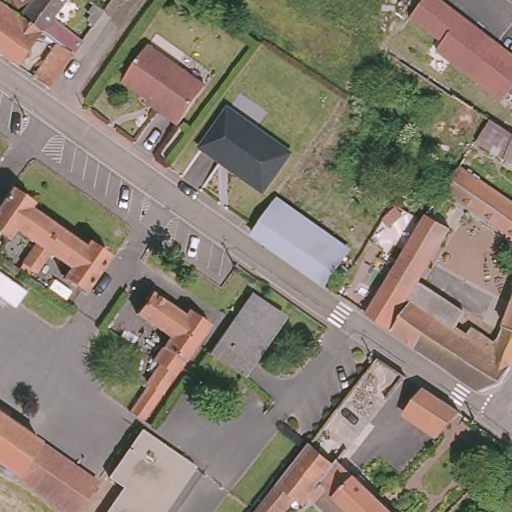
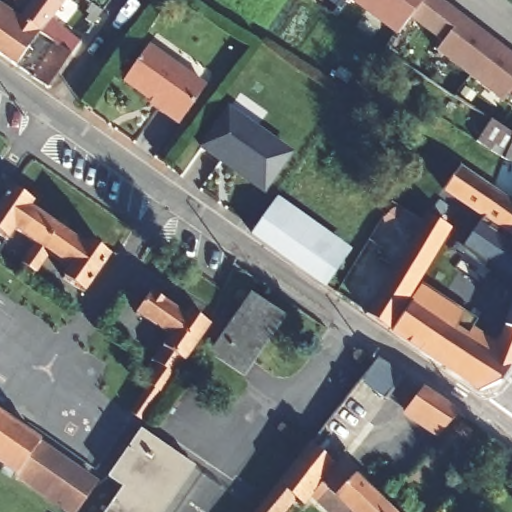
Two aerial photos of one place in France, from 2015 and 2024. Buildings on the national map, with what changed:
unchanged [(17,10),(10,0),(25,0),(28,4),(17,10)]
unchanged [(60,43),(44,31),(22,15),(33,0),(67,0),(50,22),(80,44),(74,54),(50,86),(35,76),(60,43)]
new [(396,34),(352,0),(424,0),(410,19),(396,34)]
unchanged [(512,95),(511,94),(504,104),(437,53),(444,44),(410,19),(424,0),(442,0),(512,53),(512,95)]
unchanged [(44,31),(19,64),(0,51),(0,4),(15,14),(20,14),(22,15),(44,31)]
unchanged [(182,64),(184,63),(212,84),(185,123),(162,108),(167,101),(160,96),(157,99),(129,79),(153,44),(182,64)]
unchanged [(230,115),(257,135),(286,155),(259,193),(232,173),(225,168),(226,165),(220,160),(217,164),(197,150),(225,111),(230,115)]
unchanged [(475,143),(490,121),(512,134),(512,163),(504,159),(475,143)]
unchanged [(445,223),(451,227),(390,326),(369,312),(390,273),(430,209),(455,172),(460,166),(510,198),(512,199),(512,233),(459,196),(445,223)]
unchanged [(27,263),(39,244),(18,231),(11,240),(0,233),(0,212),(15,189),(36,204),(34,209),(60,227),(33,267),(27,263)]
unchanged [(342,298),(339,297),(253,234),(277,202),(354,251),(338,275),(347,283),(350,284),(342,298)]
unchanged [(60,227),(89,247),(94,244),(112,257),(87,294),(67,279),(74,268),(52,253),(39,271),(33,267),(60,227)]
unchanged [(481,387),(404,334),(394,328),(420,287),(469,314),(465,322),(493,343),(502,330),(512,310),(512,362),(499,381),(481,387)]
unchanged [(136,414),(155,386),(152,384),(154,382),(163,367),(157,362),(174,339),(160,329),(140,315),(154,294),(175,308),(189,317),(192,312),(213,324),(167,394),(148,422),(136,414)]
unchanged [(281,317),(242,374),(212,356),(250,298),(281,317)]
unchanged [(345,399),(360,382),(370,391),(357,409),(345,399)]
unchanged [(452,414),(432,434),(400,412),(416,389),(452,414)]
unchanged [(13,473),(0,463),(0,415),(35,439),(13,473)]
unchanged [(195,464),(162,512),(106,512),(124,486),(110,477),(142,428),(195,464)]
unchanged [(95,480),(73,512),(70,512),(13,473),(35,439),(95,480)]
unchanged [(311,499),(305,507),(296,500),(286,512),(255,512),(275,487),(309,445),(332,463),(335,460),(354,476),(392,512),(325,512),(311,499)]

